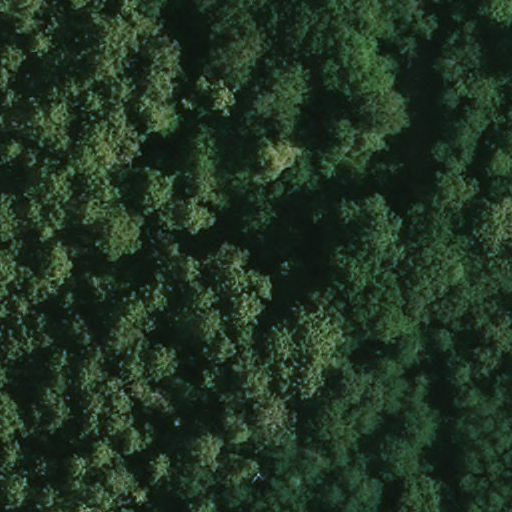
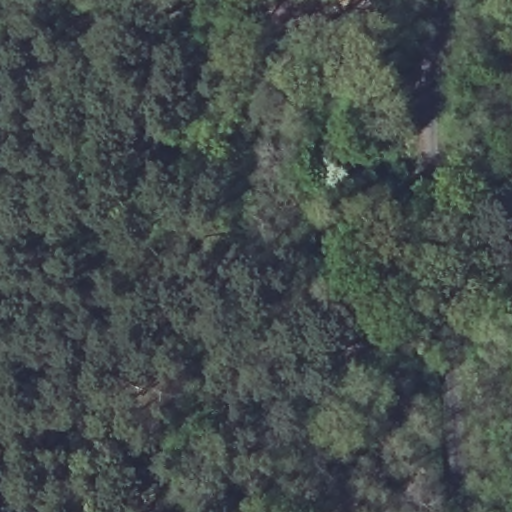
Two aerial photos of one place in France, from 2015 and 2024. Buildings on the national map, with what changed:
[]

